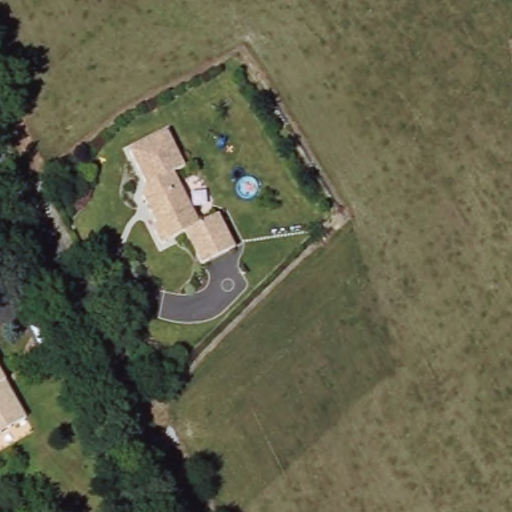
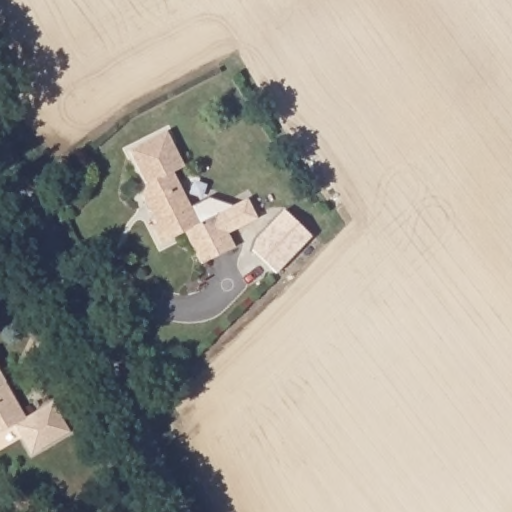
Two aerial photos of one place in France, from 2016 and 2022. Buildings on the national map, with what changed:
unchanged [(166,129),(184,164),(173,170),(200,220),(219,210),(237,243),(203,261),(187,229),(163,242),(155,228),(158,221),(143,194),(147,182),(129,148),(166,129)]
new [(255,234),(283,204),(310,230),(275,267),(251,244),(255,234)]
unchanged [(0,426),(0,363),(27,410),(0,426)]
new [(23,412),(26,417),(55,398),(73,431),(32,456),(11,419),(23,412)]

